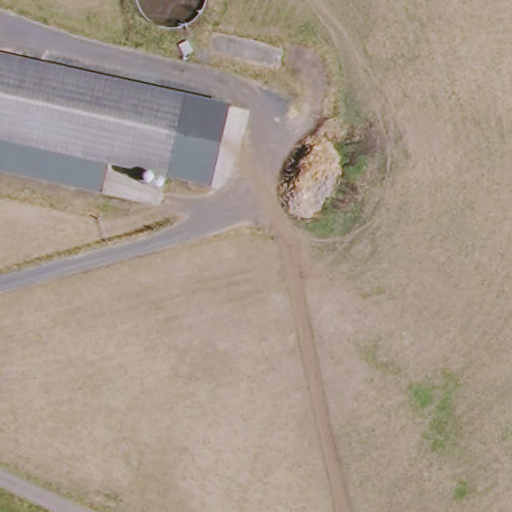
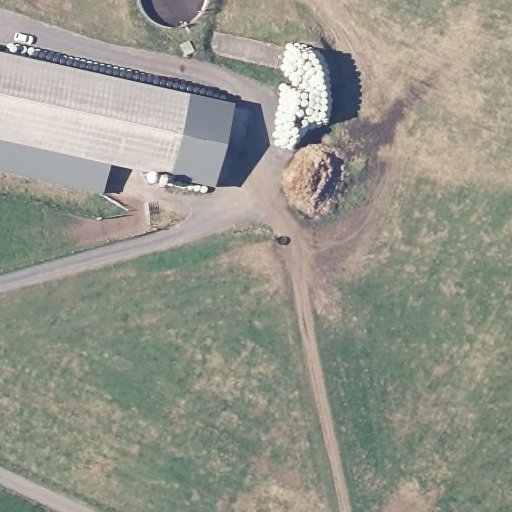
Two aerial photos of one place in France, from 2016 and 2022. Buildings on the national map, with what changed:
unchanged [(208,189),(161,179),(164,184),(161,189),(156,190),(151,187),(149,184),(146,186),(143,184),(141,181),(141,175),(143,173),(106,165),(99,194),(0,172),(0,54),(228,106),(208,189)]

